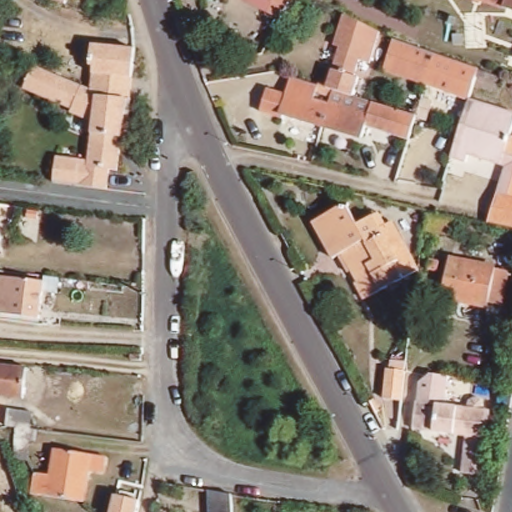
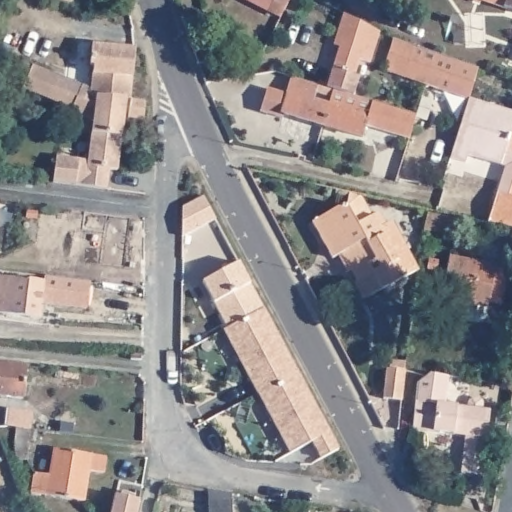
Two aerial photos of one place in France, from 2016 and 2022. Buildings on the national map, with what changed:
unchanged [(59,0),(66,0),(65,3),(59,0)]
unchanged [(260,0),(275,0),(271,6),(260,0)]
unchanged [(480,0),(512,0),(512,11),(480,0)]
unchanged [(360,61),(354,76),(358,78),(356,84),(351,97),(332,91),(328,90),(342,51),(336,50),(340,41),(348,17),(367,26),(382,34),(370,65),(360,61)]
unchanged [(431,86),(390,71),(400,41),(442,56),(431,86)]
unchanged [(130,103),(94,100),(95,92),(95,87),(97,70),(94,70),(96,50),(137,55),(135,74),(135,76),(133,103),(130,103)]
unchanged [(475,101),(431,86),(442,56),(449,58),(470,65),(485,71),(475,101)]
unchanged [(120,170),(111,169),(110,186),(55,180),(59,154),(90,156),(95,122),(72,112),(75,106),(26,86),(36,63),(95,89),(95,92),(94,100),(130,103),(120,170)]
unchanged [(321,128),(285,116),(282,121),(259,115),(267,91),(285,96),(291,78),(305,82),(328,90),(332,91),(321,128)]
unchanged [(364,128),(363,130),(360,140),(321,128),(332,91),(351,97),(372,104),(364,128)]
unchanged [(512,114),(512,229),(511,229),(493,225),(488,224),(483,223),(502,167),(471,156),(468,164),(454,159),(475,101),(512,114)]
unchanged [(409,132),(408,133),(405,141),(364,128),(372,104),(414,118),(409,132)]
unchanged [(0,217),(0,208),(1,208),(0,217)]
unchanged [(411,284),(392,295),(393,296),(393,297),(394,297),(394,298),(395,298),(395,299),(395,300),(395,301),(395,302),(395,303),(394,303),(394,304),(393,304),(393,305),(392,306),(391,307),(390,307),(390,308),(389,308),(388,308),(387,308),(386,308),(385,308),(384,308),(383,307),(382,307),(382,306),(381,306),(381,305),(380,305),(380,304),(380,303),(374,306),(365,290),(366,288),(360,277),(355,280),(345,263),(341,265),(328,244),(320,231),(353,212),(365,231),(380,222),(385,219),(392,231),(396,228),(400,235),(403,234),(412,248),(400,255),(406,266),(420,258),(425,265),(423,276),(423,277),(411,284)]
unchanged [(448,236),(423,231),(426,214),(451,218),(448,236)]
unchanged [(505,308),(490,306),(489,311),(446,303),(452,265),(510,275),(505,308)]
unchanged [(0,315),(0,276),(47,283),(43,319),(0,315)]
new [(265,308),(341,449),(322,458),(313,441),(290,452),(224,329),(265,308)]
unchanged [(0,395),(0,363),(30,368),(26,399),(0,395)]
unchanged [(397,390),(396,397),(381,396),(385,366),(400,368),(400,370),(397,390)]
unchanged [(482,476),(463,474),(469,439),(418,430),(422,401),(424,387),(425,381),(436,373),(454,376),(449,405),(470,409),(470,406),(470,403),(471,401),(474,399),(475,399),(477,399),(480,398),(481,399),(482,400),(483,401),(484,402),(485,404),(485,406),(484,411),(491,412),(482,476)]
unchanged [(36,434),(22,432),(16,431),(14,431),(16,414),(40,417),(36,434)]
unchanged [(10,430),(2,429),(3,424),(11,424),(10,430)]
demolished [(4,447),(0,448),(0,435),(1,436),(4,447)]
unchanged [(107,472),(92,470),(87,502),(50,496),(59,449),(110,457),(107,472)]
unchanged [(119,496),(143,502),(141,512),(115,512),(119,496)]
unchanged [(231,512),(208,512),(208,503),(230,502),(231,512)]

